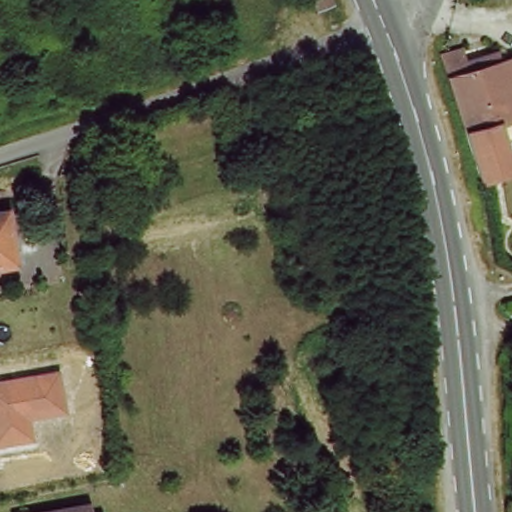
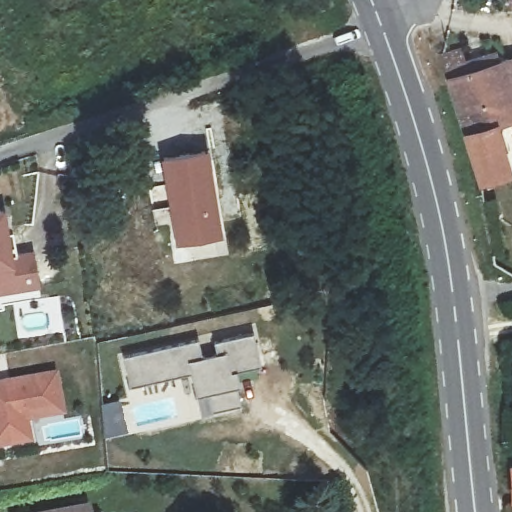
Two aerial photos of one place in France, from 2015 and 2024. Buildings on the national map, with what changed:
unchanged [(318,15),(313,0),(340,0),(342,8),(318,15)]
unchanged [(470,55),(472,74),(506,67),(512,66),(512,121),(510,121),(512,134),(512,172),(477,180),(460,98),(453,80),(441,46),(455,43),(463,41),(470,55)]
new [(206,151),(222,238),(176,247),(161,159),(206,151)]
new [(5,208),(9,230),(13,229),(16,250),(33,247),(39,285),(0,292),(0,209),(5,208)]
demolished [(15,263),(0,265),(0,215),(10,213),(15,263)]
new [(123,358),(197,342),(200,358),(217,354),(215,343),(253,335),(260,366),(236,371),(240,388),(237,388),(242,406),(211,412),(207,394),(195,396),(191,373),(130,387),(123,358)]
unchanged [(65,414),(28,421),(31,441),(0,447),(0,381),(56,370),(65,414)]
unchanged [(508,474),(512,475),(512,507),(511,506),(501,508),(494,472),(508,474)]
unchanged [(95,503),(96,512),(45,512),(95,503)]

